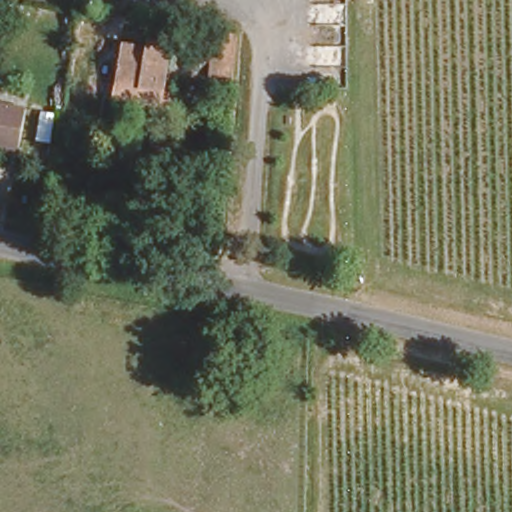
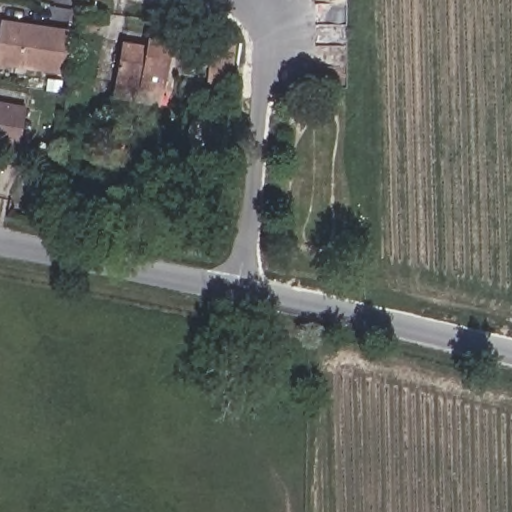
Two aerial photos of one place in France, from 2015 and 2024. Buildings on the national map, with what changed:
new [(0,26),(1,19),(74,30),(68,76),(0,64),(0,26)]
unchanged [(110,80),(113,66),(120,29),(139,32),(141,23),(172,31),(162,78),(159,91),(110,80)]
unchanged [(231,95),(213,92),(215,70),(205,68),(209,36),(214,38),(234,51),(231,95)]
unchanged [(20,143),(0,140),(0,97),(28,101),(20,143)]

